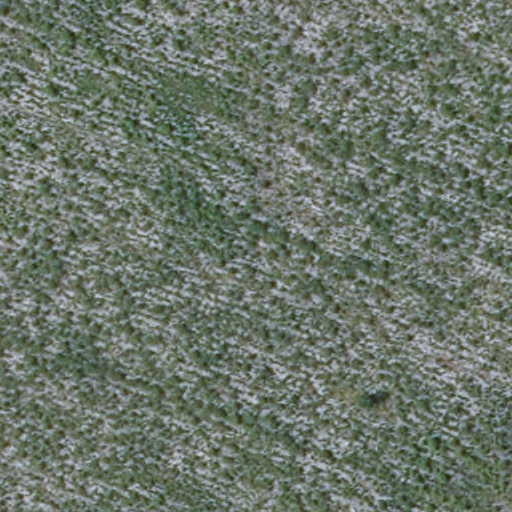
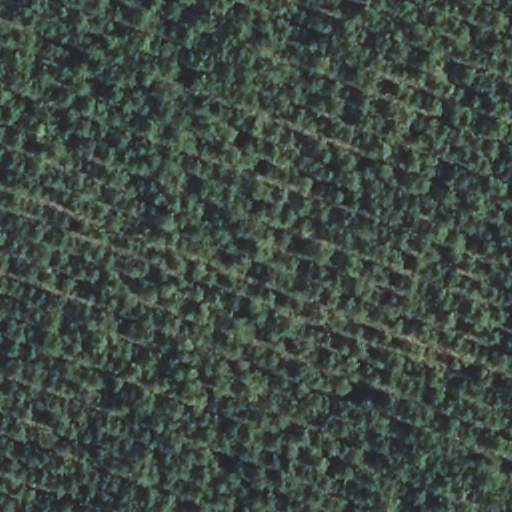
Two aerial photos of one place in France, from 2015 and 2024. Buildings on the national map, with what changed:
[]

